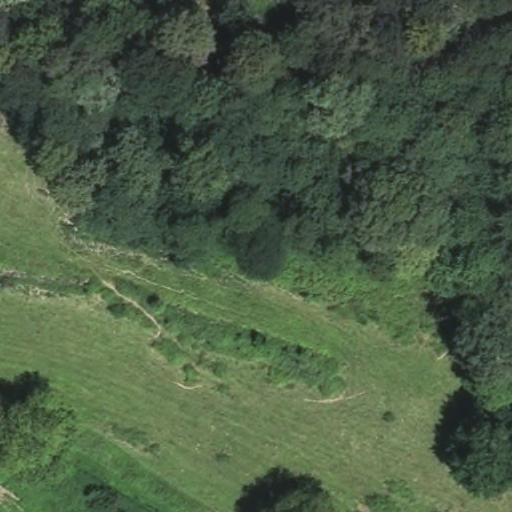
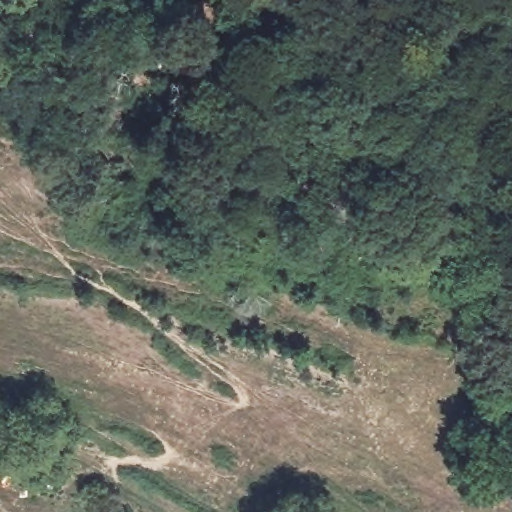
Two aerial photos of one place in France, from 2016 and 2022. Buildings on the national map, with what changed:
[]

